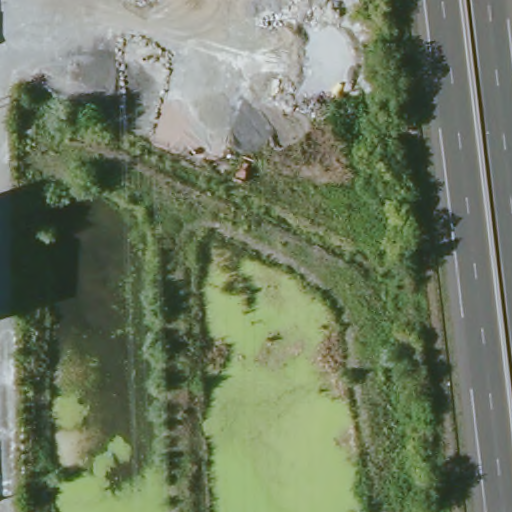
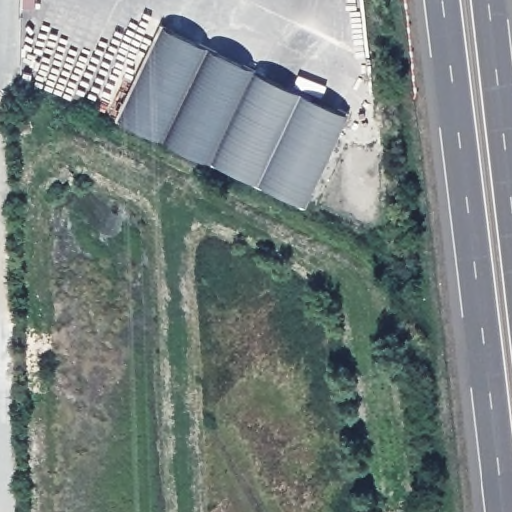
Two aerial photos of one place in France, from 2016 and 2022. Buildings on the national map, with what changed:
new [(349,118),(305,214),(115,122),(162,27),(349,118)]

